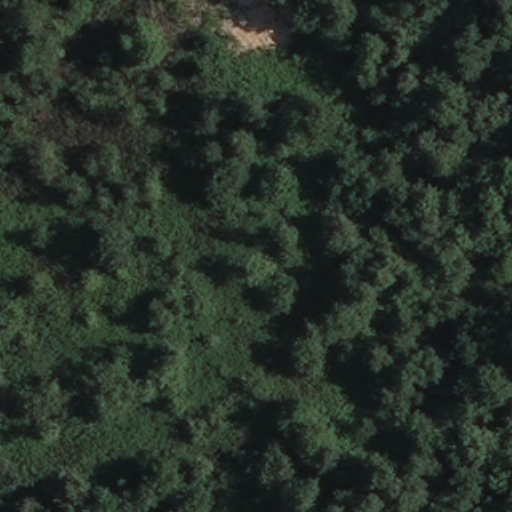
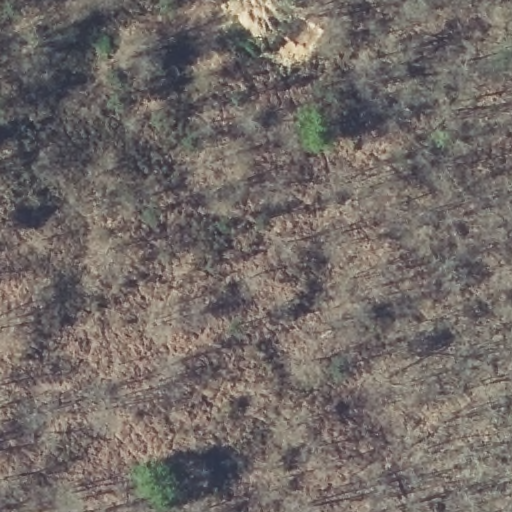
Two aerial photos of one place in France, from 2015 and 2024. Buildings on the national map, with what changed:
[]

